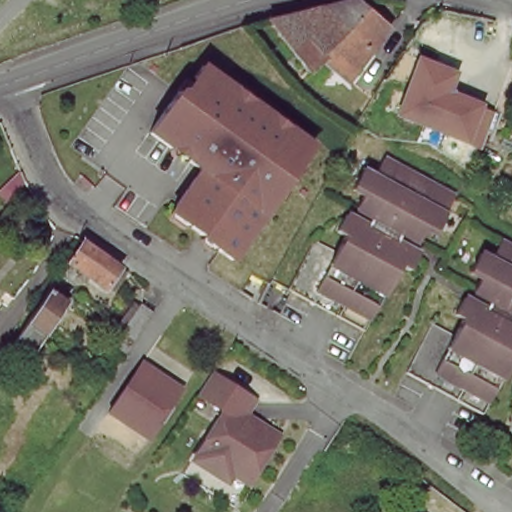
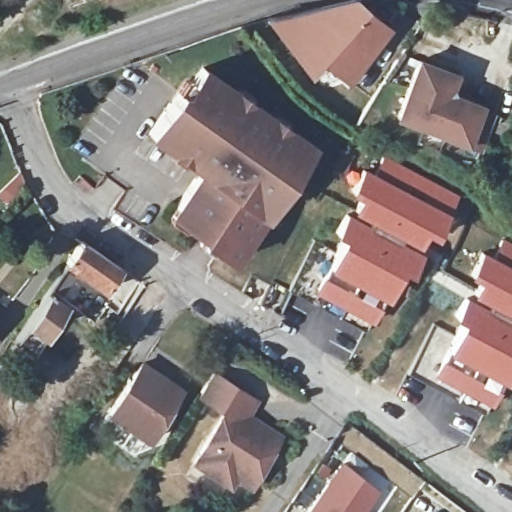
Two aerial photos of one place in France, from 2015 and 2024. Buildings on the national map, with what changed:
unchanged [(317,60),(302,72),(286,51),(281,53),(276,44),(279,42),(264,22),(281,20),(319,9),(349,0),(353,0),(362,8),(386,28),(344,81),(317,60)]
unchanged [(397,117),(420,59),(459,72),(452,92),(486,105),(495,110),(481,149),(397,117)]
unchanged [(204,174),(153,136),(183,94),(187,97),(206,69),(240,94),(255,104),(277,121),(291,132),(317,151),(306,165),(297,177),(288,190),(276,205),(233,263),(216,252),(221,246),(208,236),(206,240),(191,229),(173,216),(177,210),(204,174)]
unchanged [(355,124),(371,100),(371,99),(376,90),(390,99),(383,109),(369,134),(355,124)]
unchanged [(338,247),(347,230),(339,226),(348,209),(368,220),(372,213),(357,205),(364,192),(354,186),(366,165),(376,170),(385,152),(457,192),(437,230),(426,225),(419,237),(402,229),(399,236),(419,247),(410,264),(403,260),(367,325),(292,286),(290,284),(316,236),(338,247)]
unchanged [(485,409),(408,367),(435,317),(457,330),(466,313),(458,309),(467,293),(487,305),(492,296),(476,287),(483,275),(473,268),(484,247),(495,253),(504,236),(512,240),(512,359),(485,409)]
unchanged [(119,267),(105,287),(68,262),(81,242),(119,267)]
unchanged [(15,342),(50,288),(63,298),(68,302),(43,337),(32,353),(15,342)]
unchanged [(141,306),(153,313),(125,353),(113,345),(141,306)]
unchanged [(107,412),(141,363),(181,390),(146,440),(107,412)]
unchanged [(281,443),(253,485),(238,474),(231,482),(198,459),(231,411),(206,393),(221,372),(263,401),(253,415),(285,437),(281,443)]
new [(342,461),(381,491),(364,512),(303,512),(342,461)]

